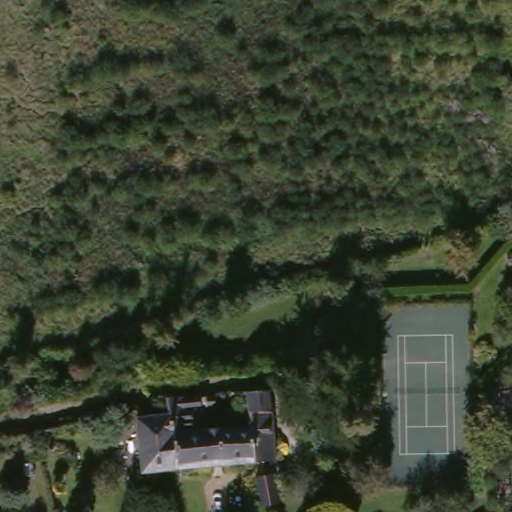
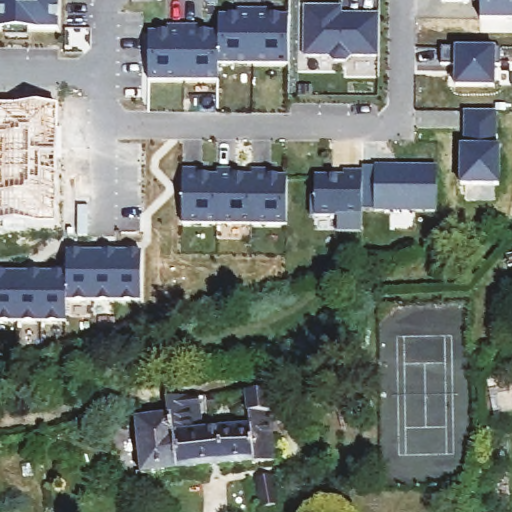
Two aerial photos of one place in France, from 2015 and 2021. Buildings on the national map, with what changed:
new [(59,29),(0,28),(0,0),(59,0),(59,29)]
new [(512,18),(482,18),(482,1),(470,0),(512,0),(512,18)]
new [(306,5),(343,5),(343,12),(343,15),(363,15),(364,13),(381,13),(380,55),(353,55),(348,60),(335,60),(330,55),(305,55),(306,5)]
new [(150,31),(168,32),(169,26),(202,26),(202,32),(220,32),(220,15),(239,15),(239,9),(272,10),(272,15),(290,15),(290,64),(220,63),(220,80),(150,80),(150,31)]
new [(443,46),(502,47),(502,65),(496,65),(496,86),(458,85),(458,64),(443,64),(443,46)]
new [(467,146),(467,110),(498,110),(497,126),(498,146),(501,147),(501,184),(463,184),(464,146),(467,146)]
new [(184,170),(202,170),(202,175),(219,175),(219,170),(253,170),(253,175),(271,175),(271,169),(289,169),(288,224),(184,223),(184,170)]
new [(312,196),(317,196),(317,175),(345,176),(345,171),(364,171),(364,230),(339,230),(340,215),(312,215),(312,196)]
new [(68,273),(69,251),(143,252),(143,301),(68,300),(68,322),(0,322),(0,273),(68,273)]
unchanged [(501,409),(492,411),(487,386),(495,384),(501,409)]
unchanged [(138,475),(133,422),(160,420),(159,402),(188,398),(208,395),(208,402),(194,403),(196,430),(243,427),(240,392),(262,389),(269,462),(138,475)]
unchanged [(259,502),(255,472),(272,470),(277,500),(259,502)]

